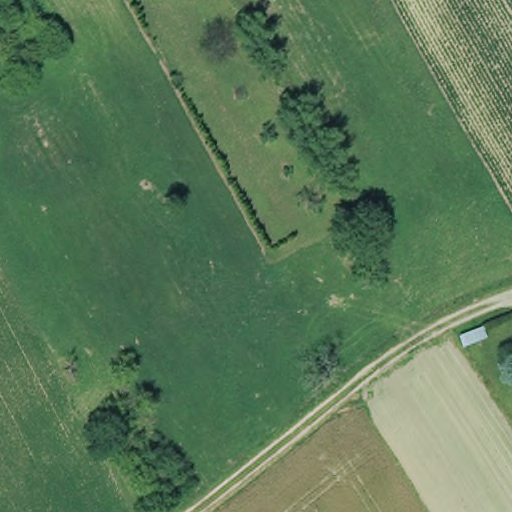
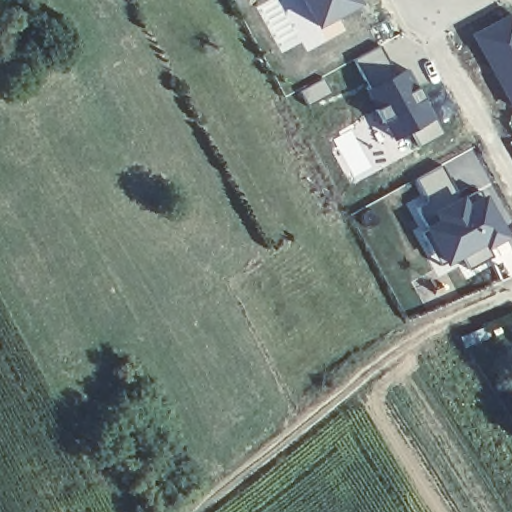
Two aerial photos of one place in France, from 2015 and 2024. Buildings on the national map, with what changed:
new [(356,5),(316,25),(304,0),(354,0),(356,5)]
new [(465,35),(512,8),(512,111),(510,112),(465,35)]
new [(380,50),(395,79),(412,69),(444,137),(420,150),(411,135),(395,144),(355,62),(380,50)]
new [(487,248),(495,262),(470,275),(460,257),(440,269),(422,234),(430,231),(420,209),(428,205),(417,184),(441,168),(461,205),(482,195),(505,238),(487,248)]
unchanged [(460,336),(483,330),(485,340),(462,345),(460,336)]

